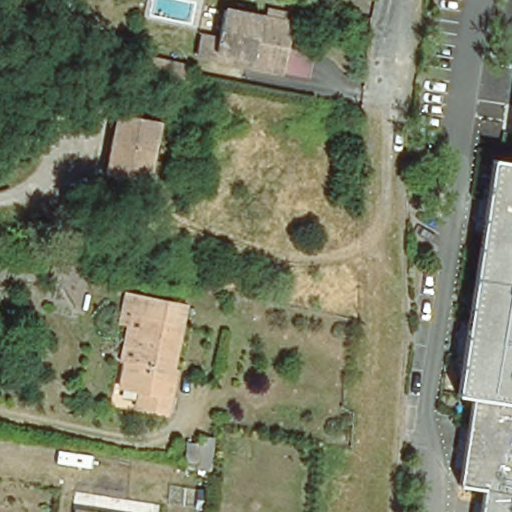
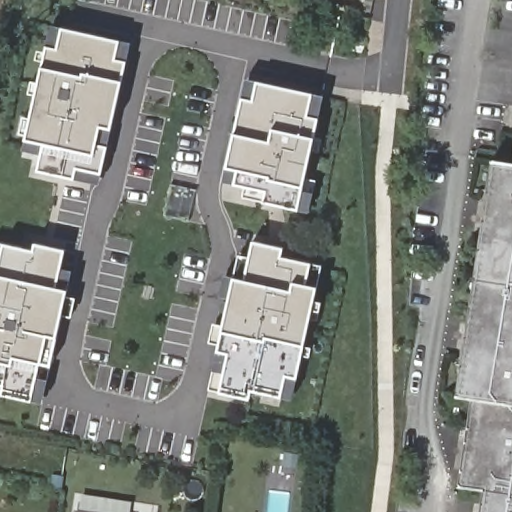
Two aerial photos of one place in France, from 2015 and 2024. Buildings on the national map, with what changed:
demolished [(225,0),(248,0),(294,10),(290,29),(222,15),(225,0)]
demolished [(290,29),(285,60),(253,54),(254,46),(217,38),(222,15),(290,29)]
new [(36,172),(40,155),(23,151),(42,63),(51,24),(61,27),(120,41),(116,59),(127,62),(111,130),(108,147),(102,175),(99,185),(75,180),(36,172)]
new [(126,62),(116,59),(120,41),(131,43),(126,62)]
new [(242,98),(246,79),(257,82),(313,94),(324,97),(319,118),(315,138),(299,212),(264,203),(266,192),(234,185),(224,182),(227,168),(242,98)]
new [(123,109),(116,108),(119,95),(125,97),(123,109)]
demolished [(154,186),(109,177),(121,120),(165,130),(154,186)]
new [(234,135),(228,133),(230,122),(237,123),(234,135)]
new [(319,152),(312,151),(315,138),(322,140),(319,152)]
unchanged [(493,155),(512,158),(512,200),(487,198),(493,155)]
new [(309,214),(299,212),(306,178),(317,181),(309,214)]
new [(190,220),(165,215),(172,185),(197,190),(190,220)]
new [(264,203),(242,198),(244,187),(266,192),(264,203)]
unchanged [(479,512),(484,483),(459,479),(469,413),(473,392),(457,389),(487,198),(512,200),(512,512),(479,512)]
new [(252,391),(249,400),(219,393),(208,391),(217,352),(234,277),(239,254),(249,257),(244,280),(253,241),(284,247),(282,256),(312,263),(323,266),(318,287),(310,320),(297,379),(292,400),(282,397),(252,391)]
new [(2,386),(0,386),(0,242),(4,243),(33,250),(35,243),(65,250),(56,288),(69,290),(67,296),(76,299),(71,318),(62,316),(56,341),(51,366),(42,404),(31,402),(0,395),(2,386)]
new [(69,290),(56,288),(60,269),(73,272),(69,290)]
new [(234,277),(229,298),(219,296),(224,275),(234,277)]
demolished [(175,368),(178,368),(170,407),(142,401),(145,387),(125,382),(129,358),(137,359),(148,312),(127,308),(131,290),(188,302),(175,368)]
new [(225,315),(219,313),(221,301),(228,303),(225,315)]
new [(322,303),(318,321),(310,320),(314,301),(322,303)]
new [(219,345),(209,342),(214,323),(223,325),(219,345)]
new [(63,342),(56,341),(59,329),(65,330),(63,342)]
demolished [(209,471),(182,468),(184,443),(199,444),(201,433),(214,435),(209,471)]
new [(295,472),(280,470),(282,455),(297,457),(295,472)]
unchanged [(75,512),(75,511),(85,512),(75,512)]

